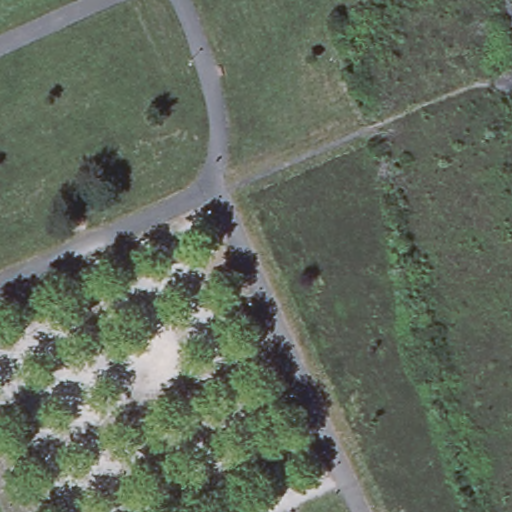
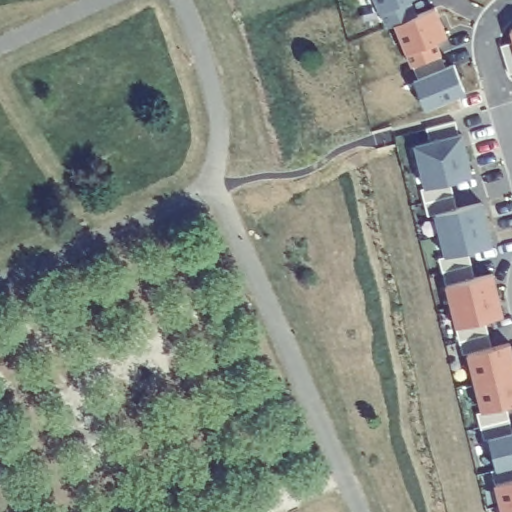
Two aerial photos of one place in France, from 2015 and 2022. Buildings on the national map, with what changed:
new [(395,23),(388,26),(376,0),(410,0),(416,14),(395,23)]
new [(416,14),(435,6),(447,35),(435,40),(441,53),(412,65),(395,23),(416,14)]
new [(510,34),(512,34),(512,40),(510,34)]
new [(512,45),(512,75),(509,76),(500,48),(512,45)]
new [(453,67),(465,95),(423,111),(414,84),(453,67)]
new [(478,177),(422,192),(408,138),(465,125),(478,177)]
new [(499,249),(442,263),(428,207),(485,194),(499,249)]
new [(508,318),(453,333),(440,279),(495,265),(508,318)]
new [(481,412),(465,351),(506,340),(505,337),(512,335),(512,403),(481,412)]
new [(495,469),(487,438),(512,431),(512,464),(495,469)]
new [(494,482),(512,477),(512,512),(501,512),(494,482)]

